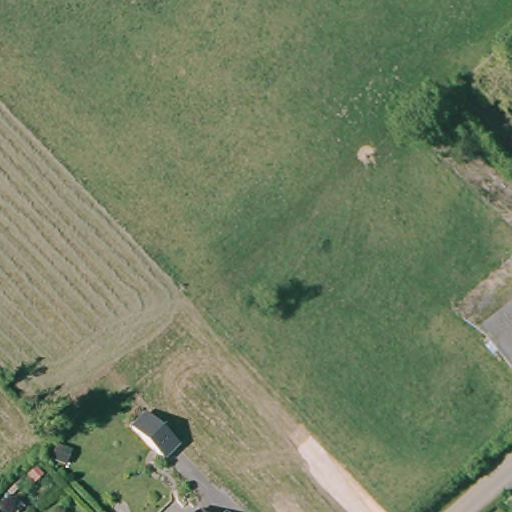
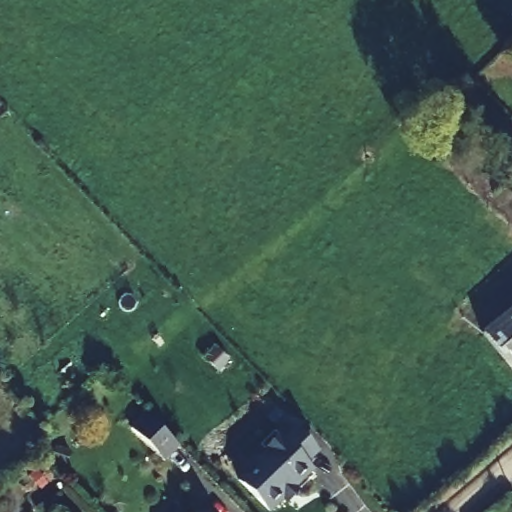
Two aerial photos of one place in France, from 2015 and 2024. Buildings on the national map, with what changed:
unchanged [(482,337),(512,313),(512,375),(482,337)]
unchanged [(169,447),(152,462),(121,427),(137,413),(169,447)]
new [(240,480),(241,478),(242,468),(252,459),(261,460),(297,426),(319,450),(305,463),(310,468),(297,480),(299,482),(269,511),(240,480)]
unchanged [(201,512),(195,512),(197,511),(201,512)]

